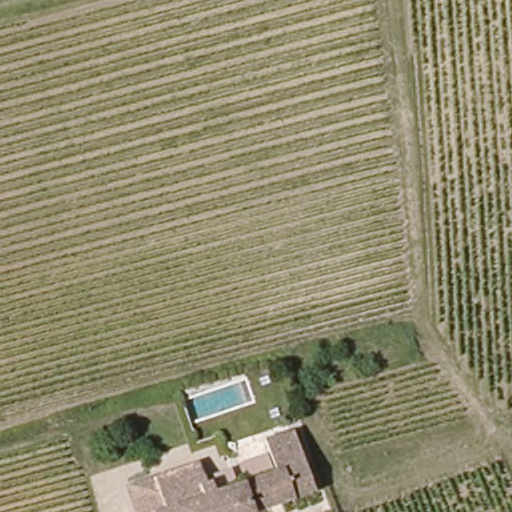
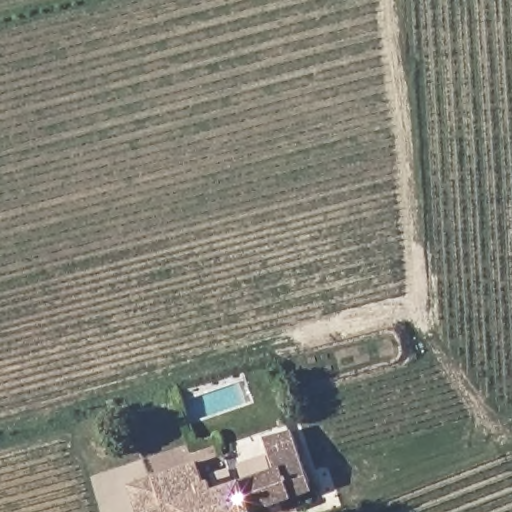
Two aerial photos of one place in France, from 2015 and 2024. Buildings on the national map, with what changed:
unchanged [(200,464),(203,472),(220,466),(231,493),(279,473),(268,441),(296,430),(316,488),(254,512),(165,512),(156,485),(200,464)]

